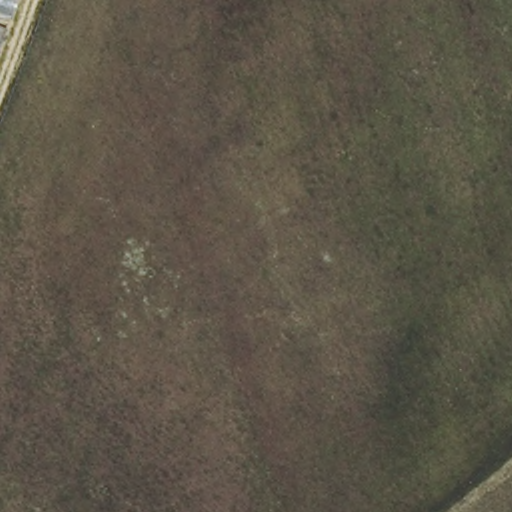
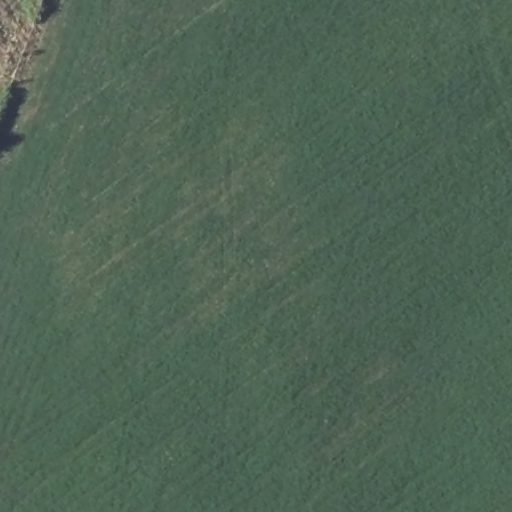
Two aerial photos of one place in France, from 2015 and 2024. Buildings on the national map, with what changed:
demolished [(14,0),(0,39),(0,0),(14,0)]

